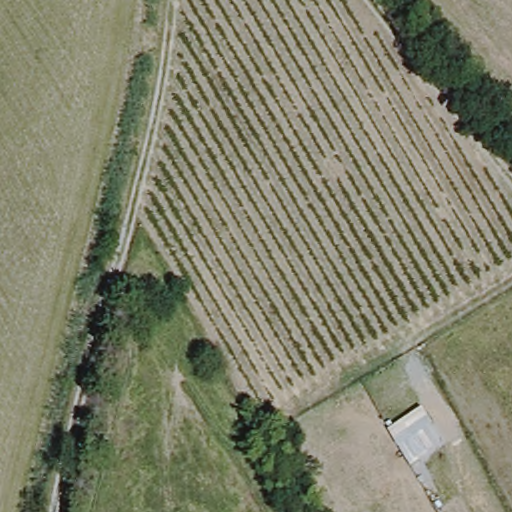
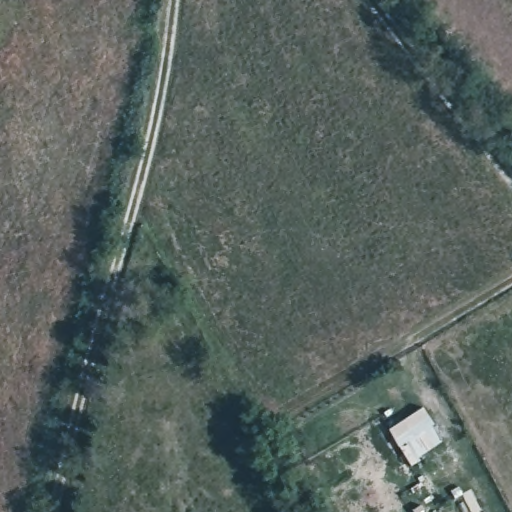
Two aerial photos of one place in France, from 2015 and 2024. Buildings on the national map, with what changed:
unchanged [(388,428),(423,407),(444,442),(410,464),(388,428)]

